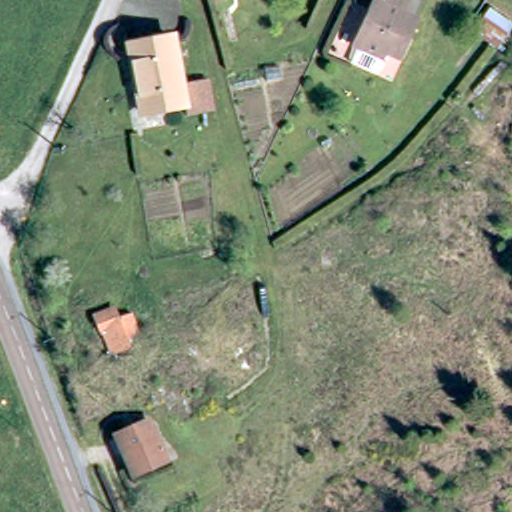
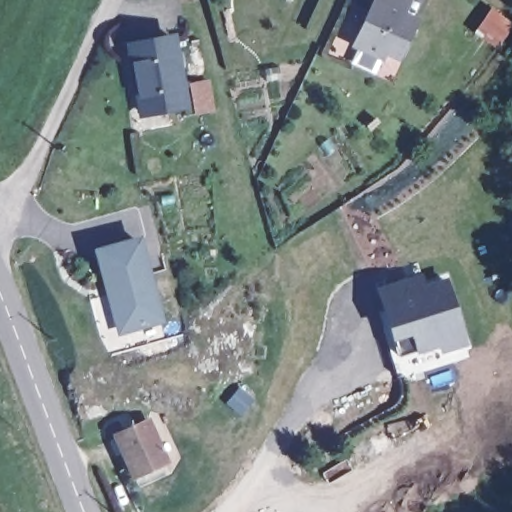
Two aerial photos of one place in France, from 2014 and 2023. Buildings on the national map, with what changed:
unchanged [(390,53),(378,47),(372,51),(350,39),(363,19),(360,15),(366,0),(400,0),(395,9),(408,19),(390,53)]
unchanged [(480,41),(498,12),(512,21),(512,38),(502,54),(480,41)]
unchanged [(185,110),(183,98),(145,106),(130,40),(172,33),(180,81),(207,75),(209,108),(185,110)]
new [(142,235),(166,323),(117,337),(94,249),(142,235)]
new [(382,284),(388,283),(425,271),(428,282),(449,275),(469,338),(473,350),(403,372),(382,304),(388,302),(382,284)]
unchanged [(112,431),(143,417),(150,429),(155,444),(160,459),(132,471),(115,437),(112,431)]

